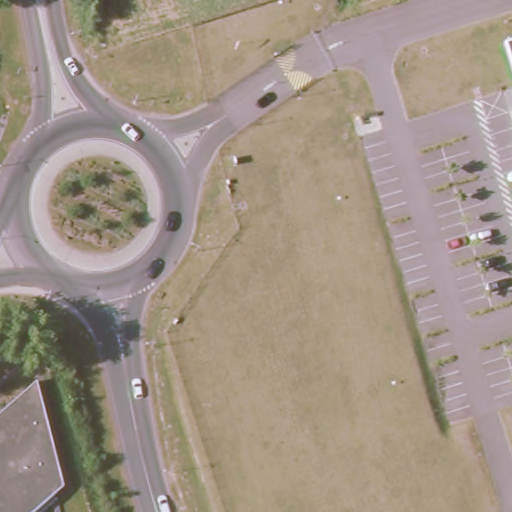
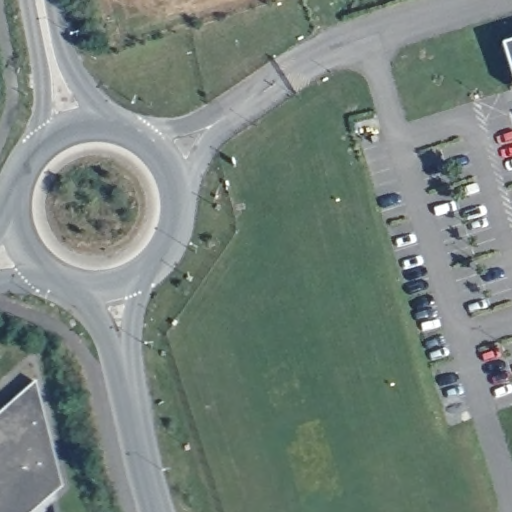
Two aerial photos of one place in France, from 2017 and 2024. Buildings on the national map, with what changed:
unchanged [(505,49),(512,47),(512,68),(505,49)]
unchanged [(36,512),(0,512),(0,414),(35,383),(62,490),(36,512)]

